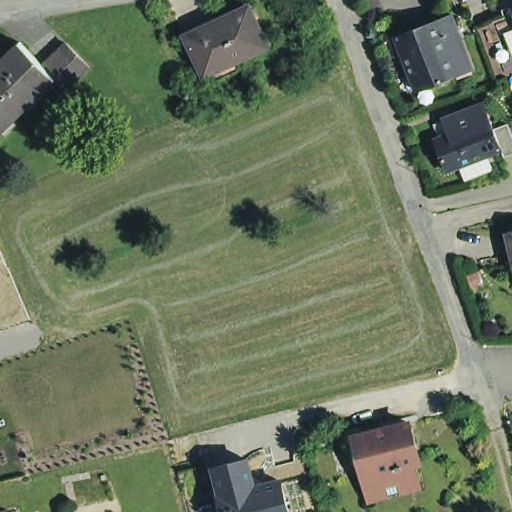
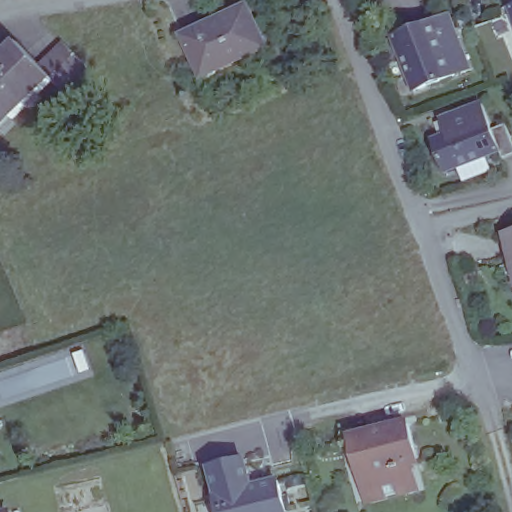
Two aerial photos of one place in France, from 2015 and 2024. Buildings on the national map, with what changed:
unchanged [(185,36),(249,7),(267,47),(221,68),(224,76),(207,83),(185,36)]
unchanged [(395,37),(451,15),(472,70),(417,91),(395,37)]
unchanged [(42,67),(66,44),(89,67),(65,90),(54,79),(0,132),(0,63),(20,44),(42,67)]
unchanged [(464,181),(459,166),(446,171),(435,140),(449,135),(442,119),(483,104),(493,129),(507,124),(512,138),(512,155),(504,158),(501,150),(487,156),(492,170),(464,181)]
unchanged [(506,229),(512,228),(512,255),(506,229)]
unchanged [(362,477),(352,438),(410,423),(420,462),(412,463),(418,487),(409,489),(410,490),(377,498),(377,497),(368,500),(362,477)]
unchanged [(211,462),(254,455),(259,482),(284,478),(291,512),(218,512),(211,462)]
unchanged [(20,512),(0,512),(19,507),(20,512)]

